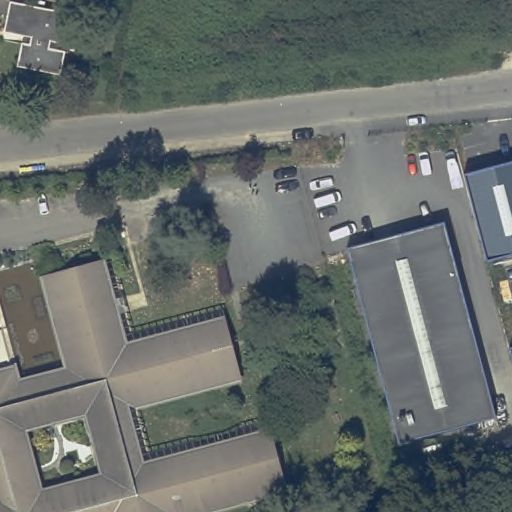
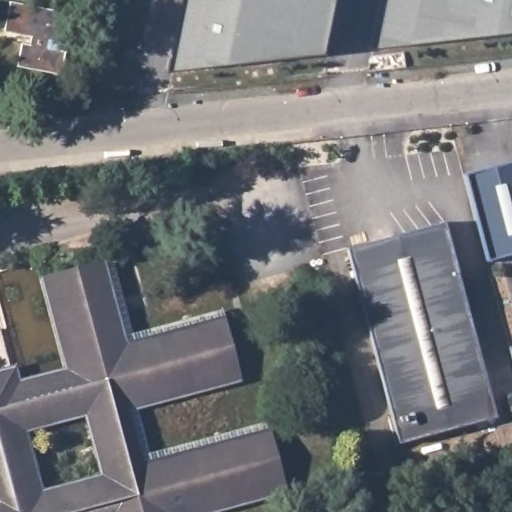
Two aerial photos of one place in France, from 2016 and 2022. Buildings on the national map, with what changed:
new [(172,67),(186,0),(337,0),(327,51),(172,67)]
new [(373,45),(382,0),(512,0),(512,31),(373,45)]
unchanged [(66,14),(60,44),(52,42),(50,50),(65,53),(61,75),(17,67),(22,44),(30,46),(32,38),(4,33),(10,3),(66,14)]
unchanged [(487,261),(463,173),(512,162),(512,254),(487,261)]
unchanged [(443,221),(497,416),(398,442),(345,247),(443,221)]
unchanged [(15,382),(65,368),(42,277),(106,261),(127,339),(218,316),(236,380),(132,408),(145,459),(265,428),(282,491),(207,512),(0,512),(0,375),(11,371),(15,382)]
unchanged [(512,348),(512,352),(511,348),(512,348)]

